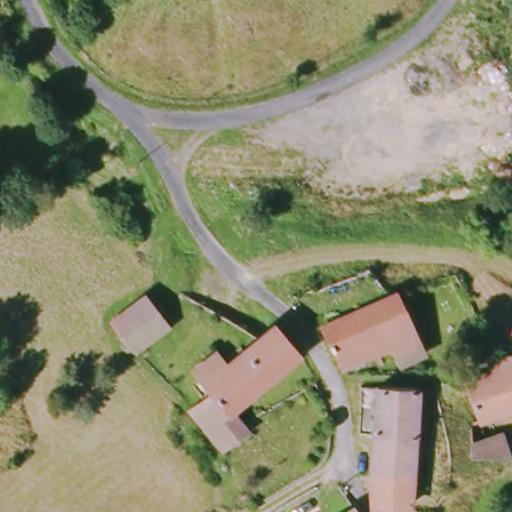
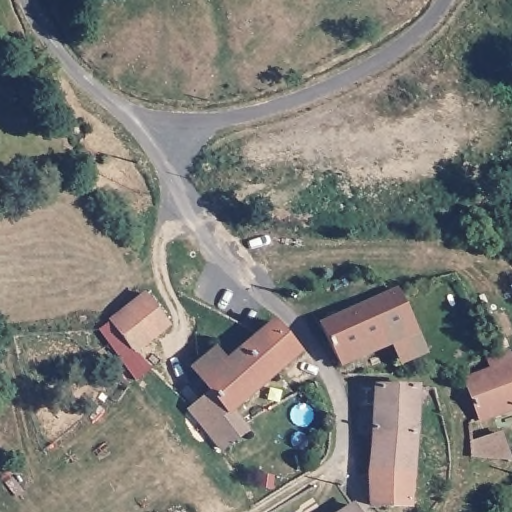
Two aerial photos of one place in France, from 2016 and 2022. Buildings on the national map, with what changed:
unchanged [(391,296),(393,295),(421,350),(407,358),(398,362),(387,343),(342,366),(335,368),(332,359),(315,330),(391,296)]
unchanged [(108,325),(144,296),(155,310),(164,322),(130,352),(108,325)]
unchanged [(225,411),(243,430),(220,450),(218,447),(185,408),(196,397),(187,386),(197,377),(189,367),(211,351),(223,362),(255,339),(271,327),(294,355),(225,411)]
unchanged [(510,369),(512,368),(512,411),(478,427),(476,421),(467,398),(462,385),(486,373),(484,361),(495,359),(507,358),(510,369)]
unchanged [(364,452),(365,439),(369,391),(411,391),(409,441),(408,453),(408,468),(403,507),(367,510),(361,502),(362,482),(364,452)]
unchanged [(470,460),(469,443),(502,443),(507,463),(470,460)]

